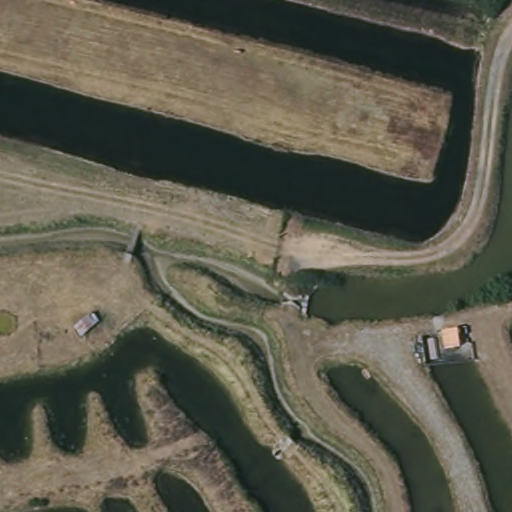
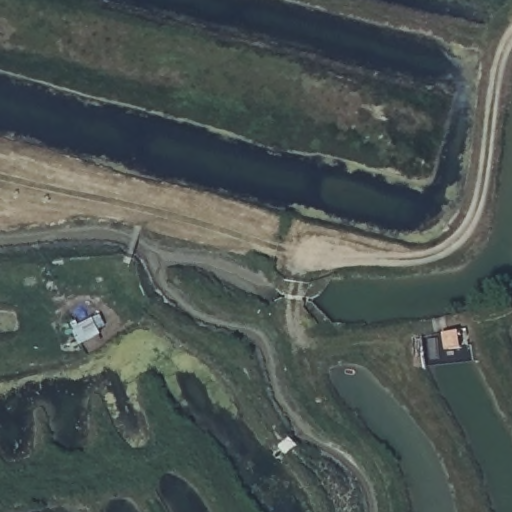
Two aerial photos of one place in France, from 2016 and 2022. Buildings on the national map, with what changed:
unchanged [(457,352),(442,352),(439,335),(457,335),(457,352)]

